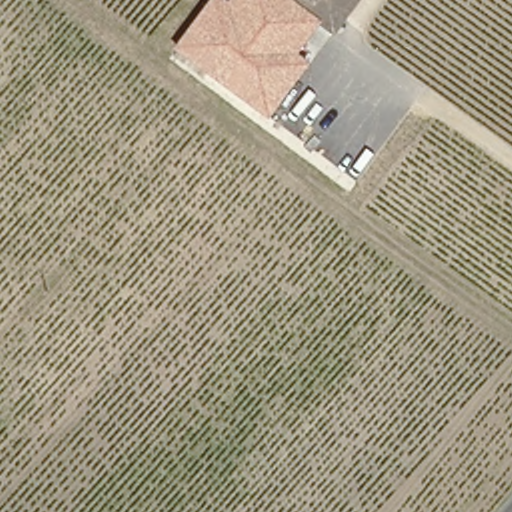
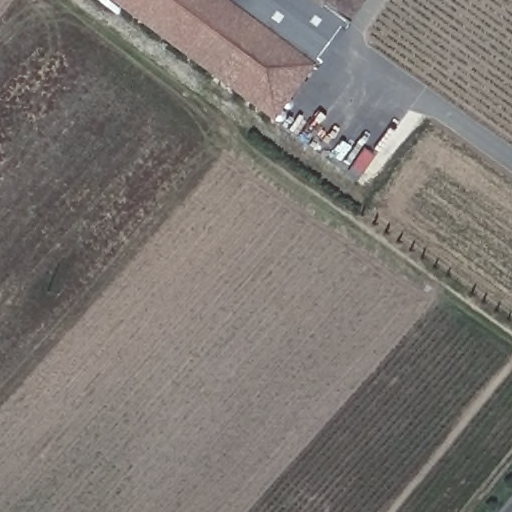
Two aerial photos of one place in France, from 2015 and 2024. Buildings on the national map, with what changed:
new [(108,0),(208,0),(173,49),(108,0)]
unchanged [(227,0),(229,2),(231,0),(288,0),(318,24),(298,53),(310,62),(269,120),(173,49),(208,0),(227,0)]
new [(227,0),(231,0),(229,2),(227,0)]
unchanged [(335,25),(329,32),(318,24),(288,0),(313,0),(339,20),(335,25)]
unchanged [(313,0),(354,0),(339,20),(313,0)]

